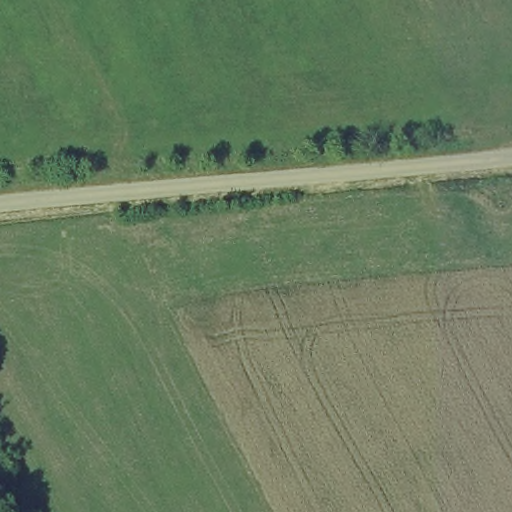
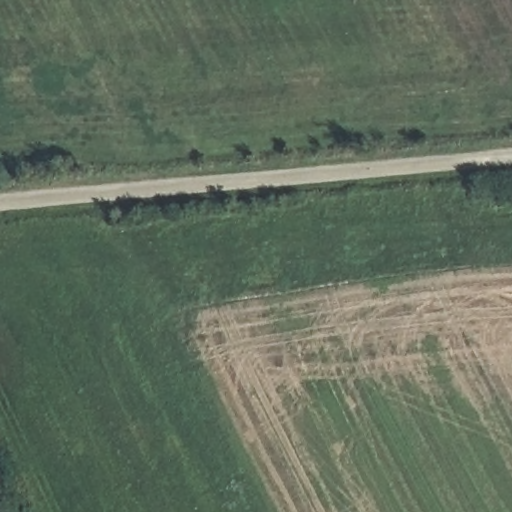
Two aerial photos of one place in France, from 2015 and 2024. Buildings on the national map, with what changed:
[]

